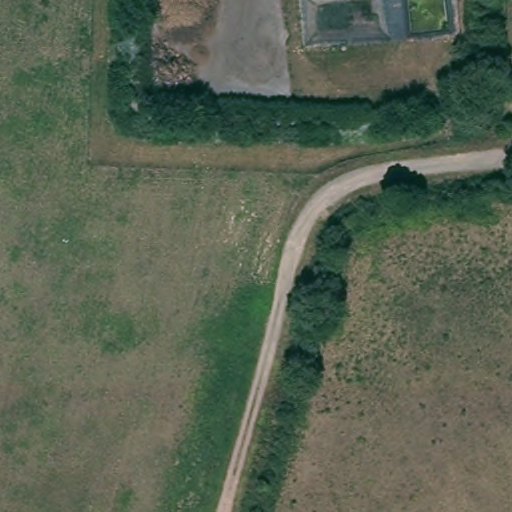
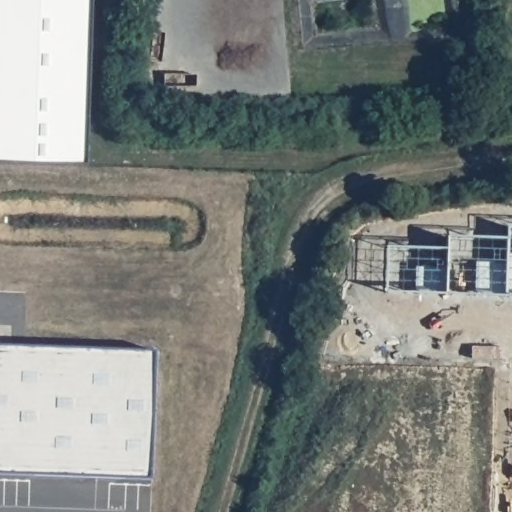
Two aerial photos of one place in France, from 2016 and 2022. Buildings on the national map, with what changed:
new [(86,165),(0,163),(0,0),(93,0),(86,165)]
new [(0,346),(155,352),(151,477),(0,472),(0,346)]

